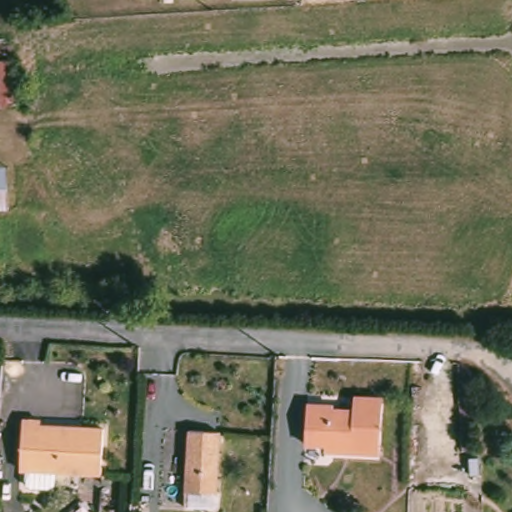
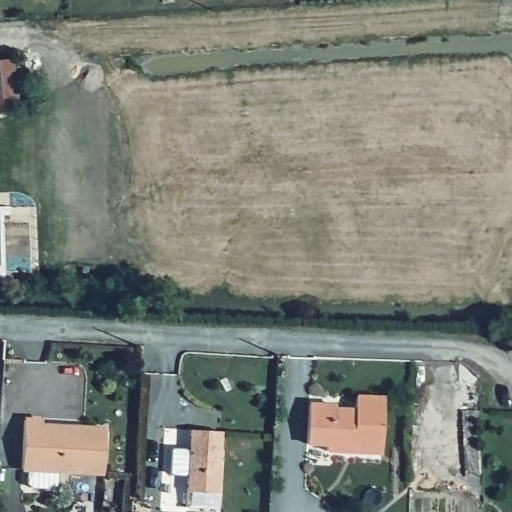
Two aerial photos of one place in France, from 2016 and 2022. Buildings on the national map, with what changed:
unchanged [(0,111),(0,67),(17,65),(21,109),(0,111)]
unchanged [(4,172),(5,212),(0,212),(0,172),(4,172)]
unchanged [(320,451),(321,445),(301,444),(303,405),(328,406),(328,414),(349,415),(350,397),(378,399),(375,454),(320,451)]
unchanged [(19,421),(36,422),(36,427),(100,430),(97,475),(51,472),(51,486),(46,490),(25,489),(21,484),(22,471),(16,471),(19,421)]
unchanged [(190,431),(221,433),(217,495),(186,493),(190,431)]

